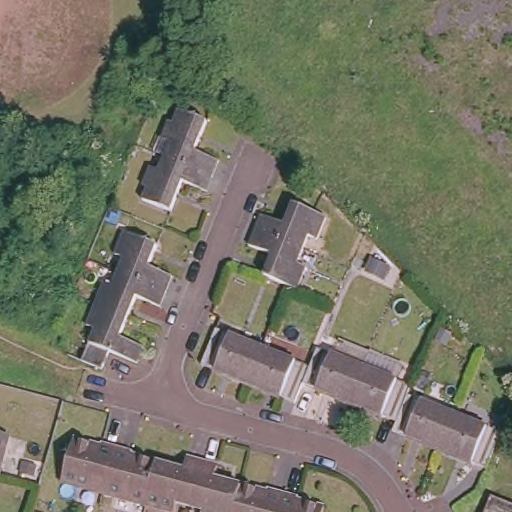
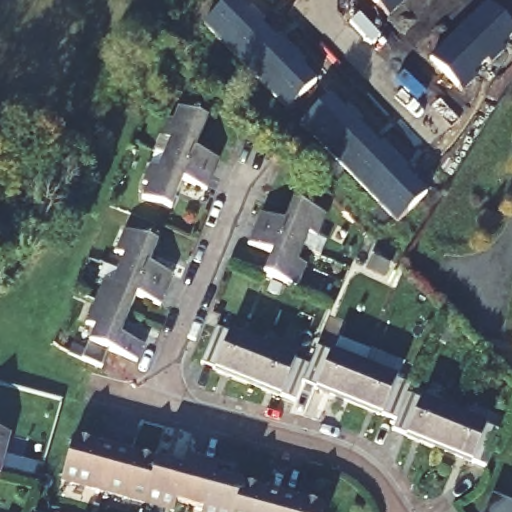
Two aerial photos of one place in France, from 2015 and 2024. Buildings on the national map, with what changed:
new [(252,5),(265,19),(261,22),(276,38),(282,32),(309,62),(302,68),(317,84),(289,111),(204,24),(229,0),(240,0),(247,9),(252,5)]
new [(371,0),(404,0),(387,16),(371,0)]
new [(512,28),(512,38),(502,47),(506,51),(492,64),(489,60),(475,74),(477,77),(464,91),(432,58),(488,2),(512,28)]
new [(343,108),(351,101),(365,117),(359,123),(379,143),(385,137),(412,166),(406,173),(426,193),(397,221),(301,124),(330,95),(343,108)]
unchanged [(168,153),(174,141),(165,136),(171,119),(180,123),(186,109),(209,120),(197,149),(222,159),(215,174),(168,153)]
unchanged [(215,174),(207,189),(186,180),(172,211),(149,199),(154,189),(144,184),(153,166),(161,169),(168,153),(215,174)]
unchanged [(252,224),(259,207),(282,218),(291,196),(330,213),(321,234),(312,230),(306,247),(252,224)]
unchanged [(117,264),(125,244),(116,240),(127,219),(157,231),(145,259),(171,270),(165,285),(117,264)]
unchanged [(306,247),(300,262),(309,266),(300,288),(262,271),(269,250),(245,240),(252,224),(306,247)]
unchanged [(158,302),(132,293),(124,313),(92,298),(100,278),(110,282),(117,264),(165,285),(158,302)]
unchanged [(91,359),(79,354),(87,336),(92,325),(83,320),(92,298),(124,313),(116,330),(142,341),(135,357),(107,345),(100,363),(91,359)]
unchanged [(212,332),(214,333),(306,368),(314,351),(409,386),(406,397),(504,436),(489,472),(391,434),(394,423),(297,388),(291,406),(197,368),(212,332)]
unchanged [(0,470),(0,430),(10,433),(0,470)]
unchanged [(129,453),(131,458),(185,471),(187,462),(219,469),(216,480),(267,493),(267,491),(300,498),(299,502),(327,510),(326,512),(206,512),(176,505),(174,512),(168,512),(62,485),(73,442),(100,450),(101,446),(129,453)]
unchanged [(512,500),(512,512),(486,512),(492,492),(512,500)]

